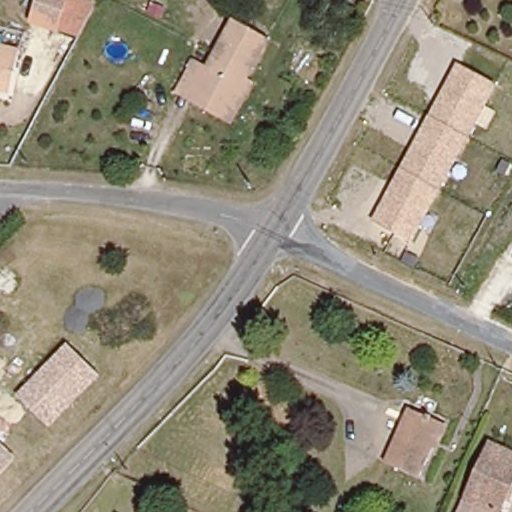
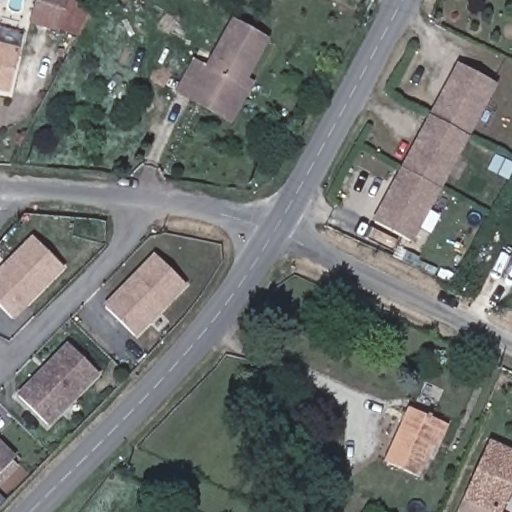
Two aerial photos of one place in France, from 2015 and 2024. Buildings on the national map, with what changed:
unchanged [(58,33),(29,25),(36,0),(68,0),(58,33)]
unchanged [(225,114),(192,98),(204,71),(226,21),(262,37),(242,81),(225,114)]
unchanged [(4,96),(0,95),(0,48),(17,54),(4,96)]
unchanged [(250,85),(231,125),(174,99),(190,65),(204,71),(192,98),(225,114),(242,81),(250,85)]
unchanged [(411,241),(375,221),(458,65),(495,84),(411,241)]
new [(0,307),(0,271),(32,238),(61,266),(11,318),(0,307)]
new [(136,335),(105,307),(155,254),(185,282),(136,335)]
unchanged [(50,428),(15,396),(66,341),(101,376),(50,428)]
unchanged [(417,476),(383,460),(406,406),(442,421),(417,476)]
unchanged [(0,440),(17,457),(0,475),(0,440)]
unchanged [(494,512),(489,512),(460,499),(485,444),(512,456),(512,475),(494,512)]

